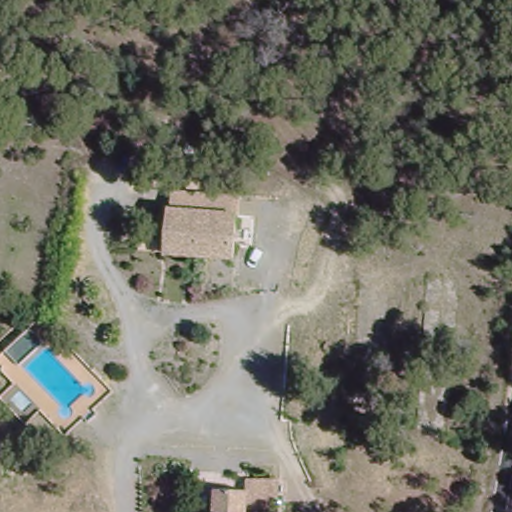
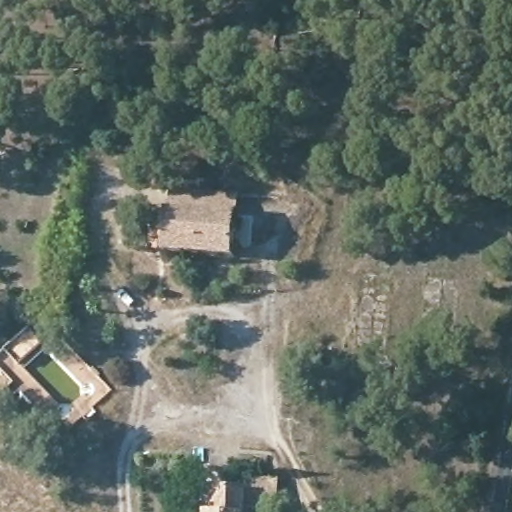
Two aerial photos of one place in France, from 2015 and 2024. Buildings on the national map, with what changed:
unchanged [(175,185),(238,191),(237,218),(174,212),(175,185)]
unchanged [(174,212),(237,218),(234,260),(225,260),(212,259),(169,254),(174,212)]
unchanged [(206,511),(226,512),(206,512),(206,511)]

